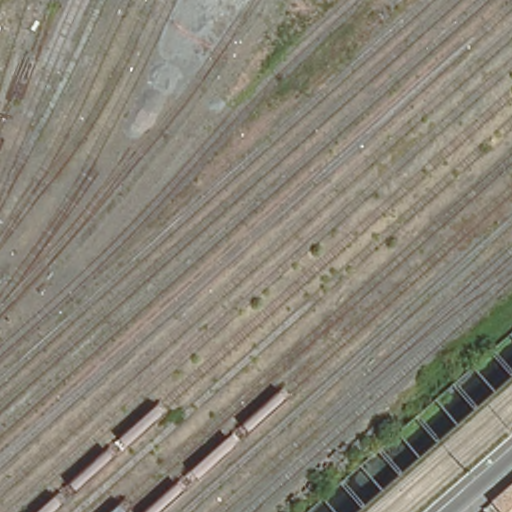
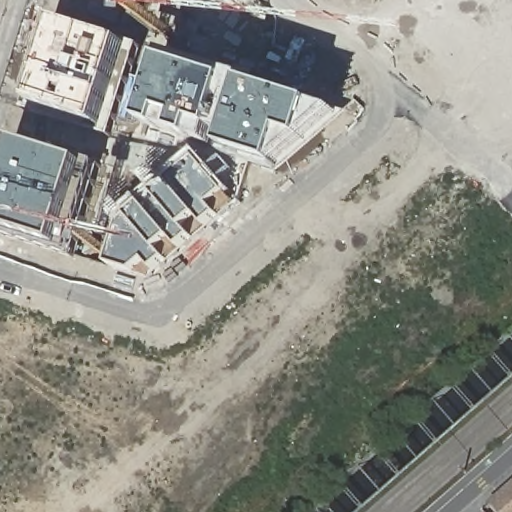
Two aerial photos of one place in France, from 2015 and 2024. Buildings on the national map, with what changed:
new [(64,29),(132,49),(122,78),(158,88),(167,63),(171,56),(249,80),(247,85),(317,106),(338,115),(279,166),(243,155),(232,194),(215,209),(220,217),(154,272),(147,263),(134,274),(110,266),(117,241),(75,228),(67,252),(3,231),(0,230),(0,198),(16,142),(28,149),(38,110),(64,29)]
unchanged [(512,479),(512,512),(496,512),(486,501),(512,479)]

